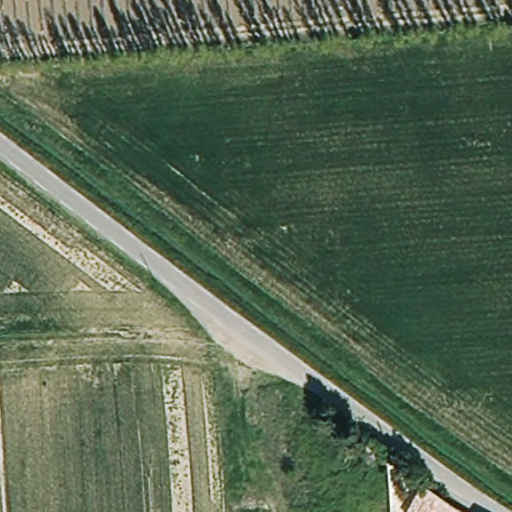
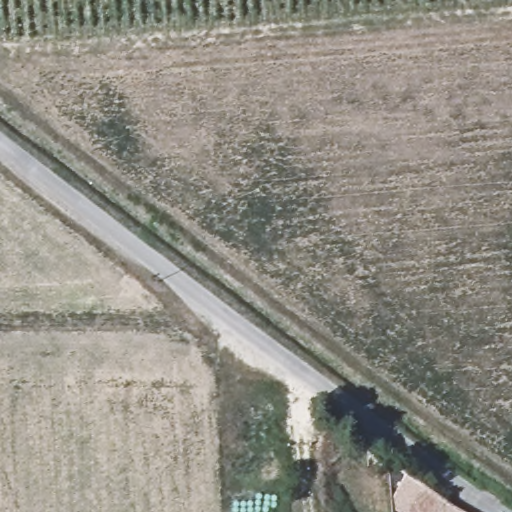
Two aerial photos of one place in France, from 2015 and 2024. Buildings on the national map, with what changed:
unchanged [(363,462),(363,438),(383,451),(383,473),(363,462)]
unchanged [(407,512),(422,487),(465,512),(407,512)]

